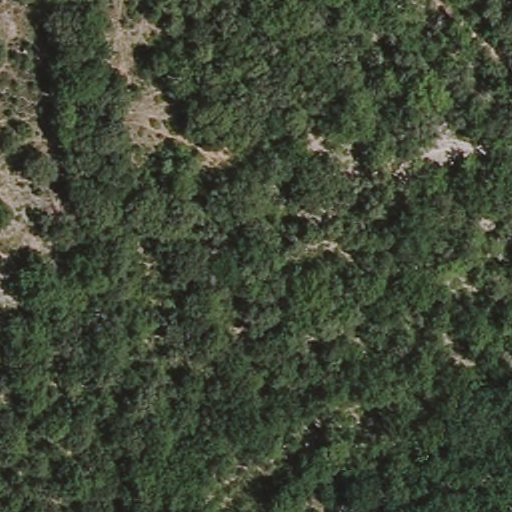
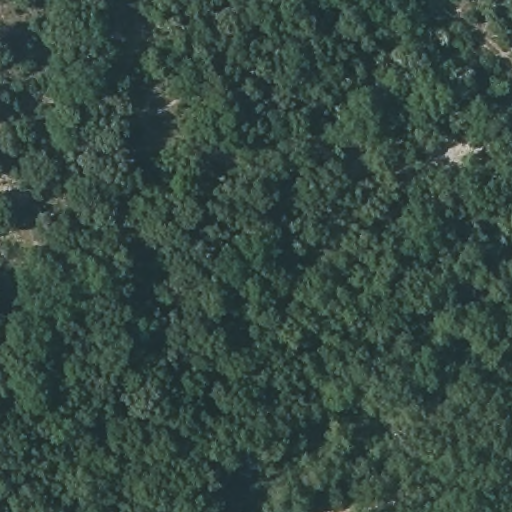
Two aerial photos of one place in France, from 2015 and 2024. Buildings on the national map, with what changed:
unchanged [(5,22),(16,22),(16,39),(6,37),(5,22)]

